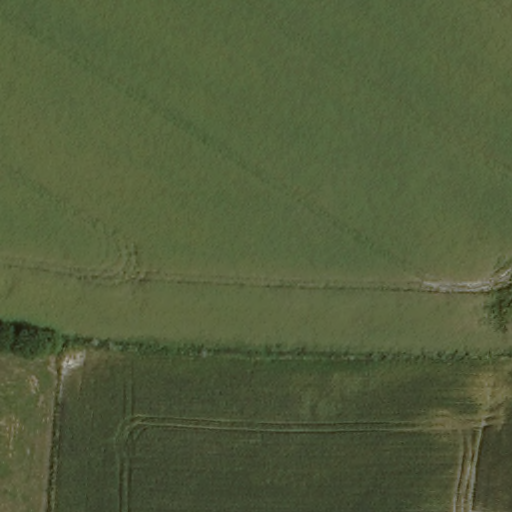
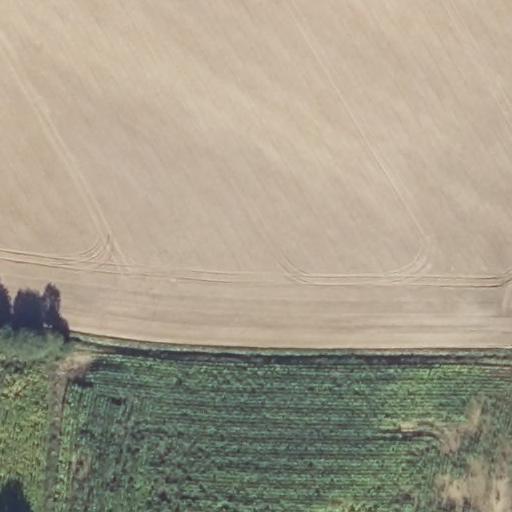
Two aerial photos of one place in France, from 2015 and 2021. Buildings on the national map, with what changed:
[]

